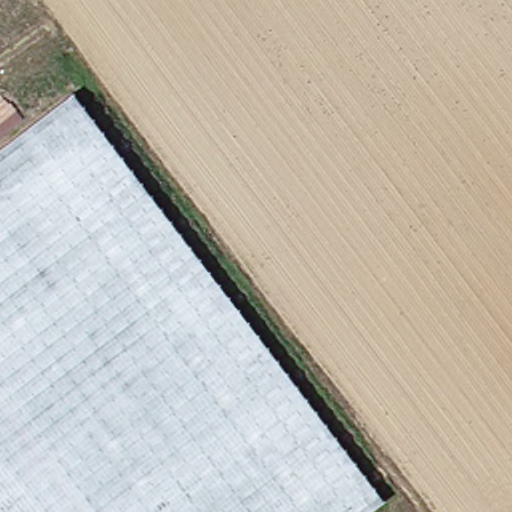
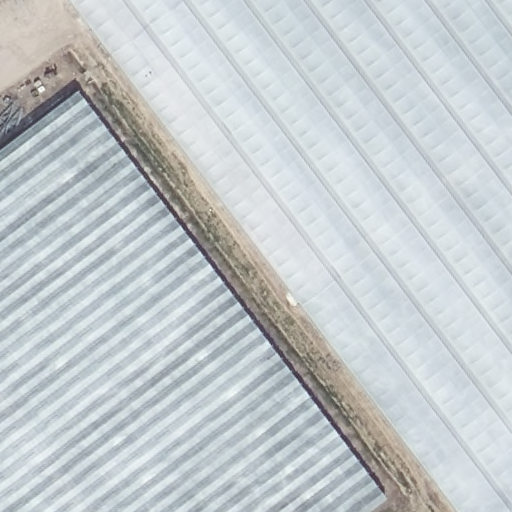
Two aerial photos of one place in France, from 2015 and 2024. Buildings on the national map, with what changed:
new [(66,0),(512,0),(512,512),(458,512),(66,0)]
unchanged [(366,512),(93,512),(0,390),(0,149),(60,104),(366,512)]
unchanged [(64,512),(0,512),(0,430),(64,512)]

